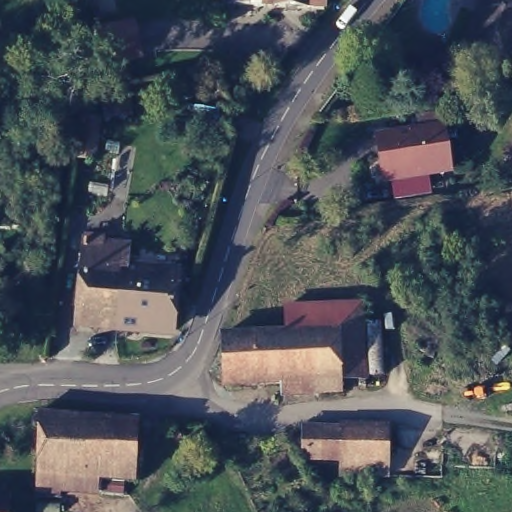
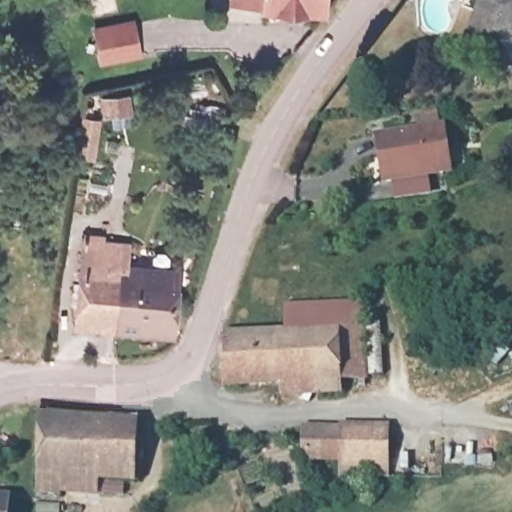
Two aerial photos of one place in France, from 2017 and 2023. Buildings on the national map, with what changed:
unchanged [(464,42),(481,0),(512,0),(512,55),(511,59),(464,42)]
unchanged [(134,21),(141,56),(102,63),(95,29),(134,21)]
unchanged [(395,183),(393,170),(387,171),(382,146),(379,126),(441,116),(448,161),(415,166),(417,180),(395,183)]
unchanged [(144,325),(145,311),(101,308),(100,320),(100,321),(100,322),(76,320),(84,238),(88,238),(88,229),(100,231),(99,239),(125,242),(126,262),(180,267),(173,327),(144,325)]
unchanged [(282,373),(225,376),(223,324),(286,322),(285,297),(361,294),(366,377),(359,377),(359,369),(341,370),(342,383),(321,384),(283,386),(282,373)]
unchanged [(440,349),(438,351),(435,352),(433,359),(429,357),(429,351),(424,352),(419,351),(418,346),(419,342),(421,340),(424,339),(426,340),(433,335),(441,338),(443,337),(444,338),(447,340),(448,342),(448,345),(447,347),(444,349),(440,349)]
unchanged [(497,364),(488,356),(498,344),(508,353),(497,364)]
unchanged [(99,491),(53,488),(53,493),(36,491),(40,412),(138,419),(138,434),(144,434),(144,441),(138,441),(136,481),(100,478),(100,479),(124,482),(123,495),(99,491)]
unchanged [(388,425),(387,471),(342,471),(343,452),(304,451),(306,422),(388,425)]
unchanged [(208,442),(189,452),(183,440),(203,431),(208,442)]
unchanged [(1,495),(1,512),(0,512),(0,495),(1,495)]

